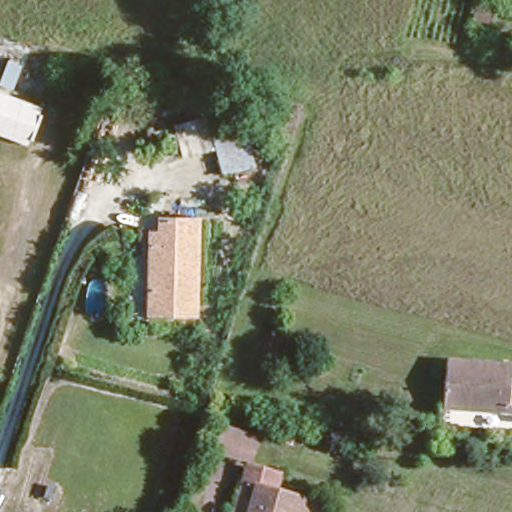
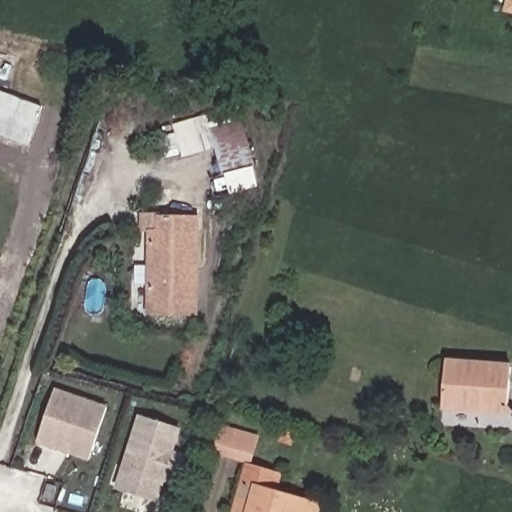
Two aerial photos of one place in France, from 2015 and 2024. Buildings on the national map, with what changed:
unchanged [(512,33),(512,39),(510,38),(512,33)]
unchanged [(0,64),(8,66),(15,49),(36,56),(23,96),(49,104),(29,140),(0,131),(0,64)]
unchanged [(220,170),(211,143),(175,153),(169,114),(237,100),(252,161),(220,170)]
unchanged [(194,217),(193,316),(141,314),(141,236),(148,238),(147,216),(194,217)]
unchanged [(438,409),(442,351),(512,357),(512,413),(438,409)]
new [(107,406),(89,461),(36,443),(55,389),(107,406)]
new [(139,414),(182,428),(159,502),(115,488),(139,414)]
unchanged [(254,453),(249,465),(213,455),(222,424),(264,436),(260,456),(254,453)]
unchanged [(233,512),(249,465),(254,453),(260,456),(284,467),(280,479),(323,493),(319,512),(233,512)]

